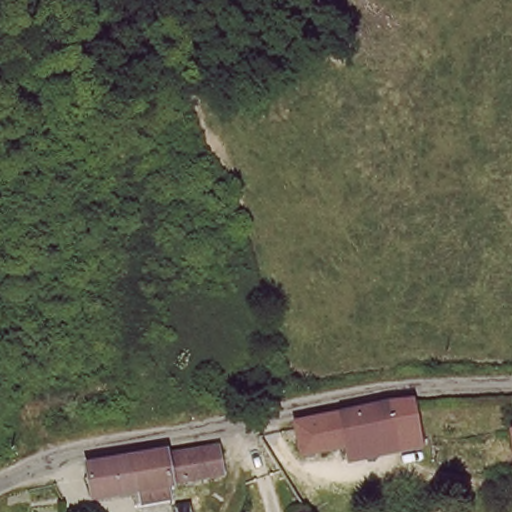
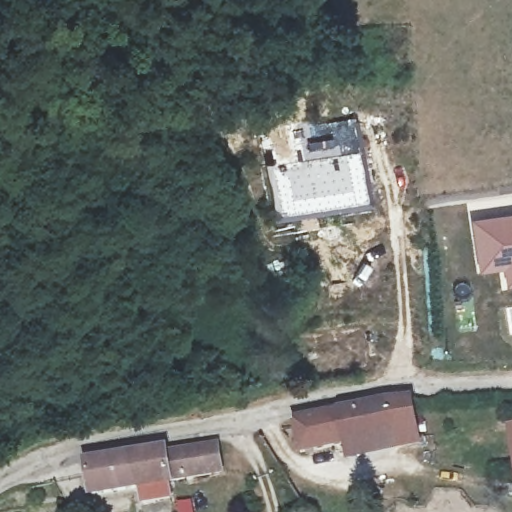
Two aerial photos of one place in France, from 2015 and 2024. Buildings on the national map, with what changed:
new [(354,117),(368,202),(277,215),(266,130),(354,117)]
new [(512,214),(512,282),(503,284),(500,268),(476,271),(471,219),(512,214)]
unchanged [(411,406),(417,448),(393,451),(390,435),(298,453),(294,427),(411,406)]
unchanged [(215,449),(220,476),(168,484),(165,458),(215,449)]
unchanged [(165,458),(168,484),(170,508),(142,512),(138,512),(136,497),(91,502),(87,466),(164,454),(165,458)]

